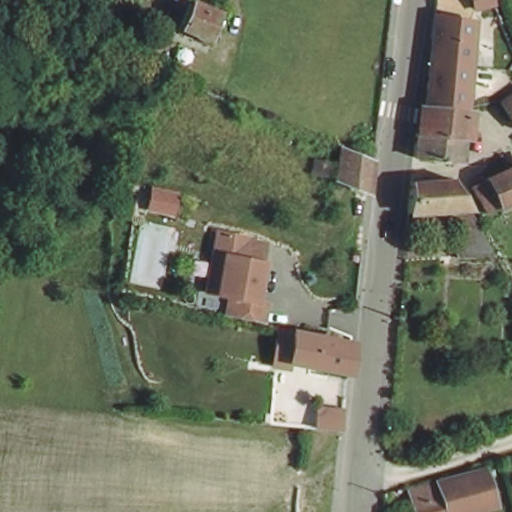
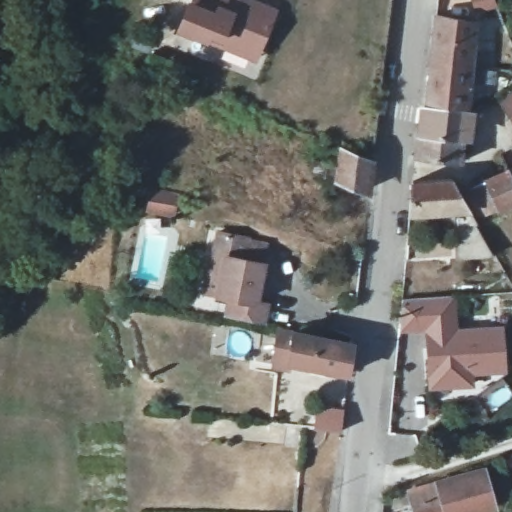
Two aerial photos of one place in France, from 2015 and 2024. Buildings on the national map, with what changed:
new [(190,0),(261,0),(278,7),(255,62),(218,45),(205,40),(178,28),(189,1),(190,0)]
unchanged [(475,0),(496,0),(497,4),(475,6),(475,0)]
demolished [(205,40),(178,28),(189,1),(216,13),(205,40)]
unchanged [(411,151),(412,146),(414,134),(417,134),(419,134),(420,134),(421,123),(422,116),(423,106),(423,105),(424,96),(425,84),(426,76),(427,64),(428,56),(430,42),(431,29),(432,19),(433,13),(433,9),(434,8),(434,7),(439,9),(438,15),(466,21),(469,42),(467,66),(464,88),(462,106),(460,127),(468,128),(467,140),(465,140),(463,159),(457,158),(457,161),(411,157),(411,151)]
unchanged [(512,118),(502,103),(512,96),(512,118)]
unchanged [(368,191),(331,182),(338,151),(369,164),(368,191)]
unchanged [(501,210),(498,204),(486,209),(472,182),(486,175),(487,175),(486,175),(486,174),(490,172),(508,164),(509,164),(512,163),(512,205),(505,209),(501,210)]
unchanged [(457,257),(455,235),(453,210),(410,214),(410,209),(410,205),(411,202),(411,197),(411,196),(412,187),(413,181),(422,180),(425,180),(448,177),(453,177),(453,178),(461,193),(465,199),(466,203),(478,226),(479,228),(480,230),(490,254),(457,257)]
new [(152,187),(177,192),(172,212),(148,207),(152,187)]
unchanged [(234,293),(221,289),(229,252),(216,250),(221,225),(254,232),(249,257),(271,263),(262,299),(278,300),(273,319),(253,314),(231,309),(234,293)]
new [(460,299),(460,330),(511,330),(509,376),(474,376),(474,390),(433,391),(433,335),(403,334),(403,299),(460,299)]
unchanged [(352,361),(351,372),(290,358),(275,364),(278,323),(294,327),(316,331),(354,339),(352,361)]
unchanged [(344,429),(318,427),(321,409),(346,411),(344,429)]
unchanged [(486,463),(500,510),(492,512),(413,512),(405,487),(486,463)]

